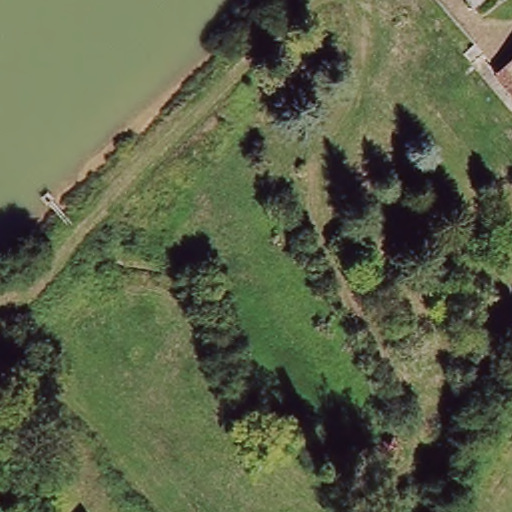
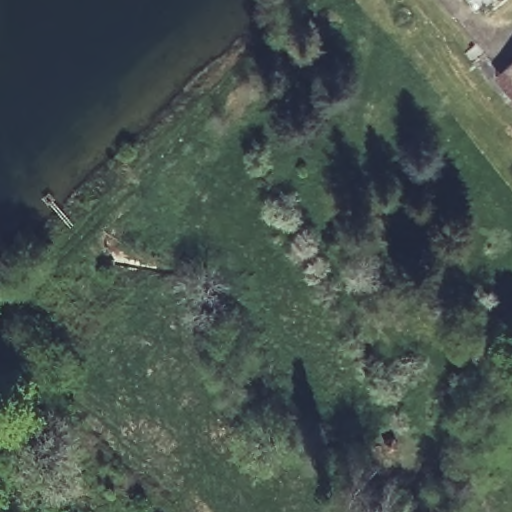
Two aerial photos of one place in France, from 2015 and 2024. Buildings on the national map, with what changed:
unchanged [(509,55),(512,52),(512,58),(509,55)]
unchanged [(512,58),(512,101),(488,73),(509,55),(512,58)]

